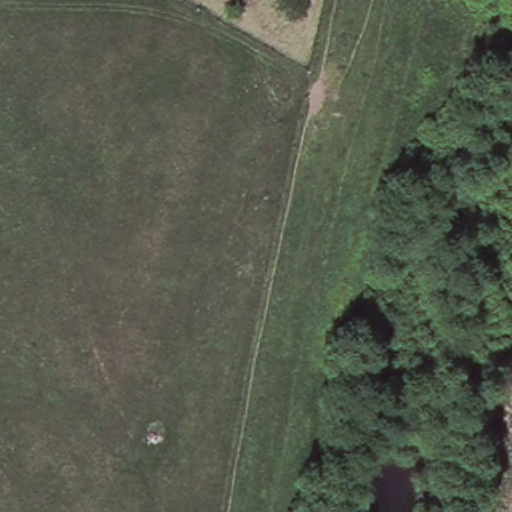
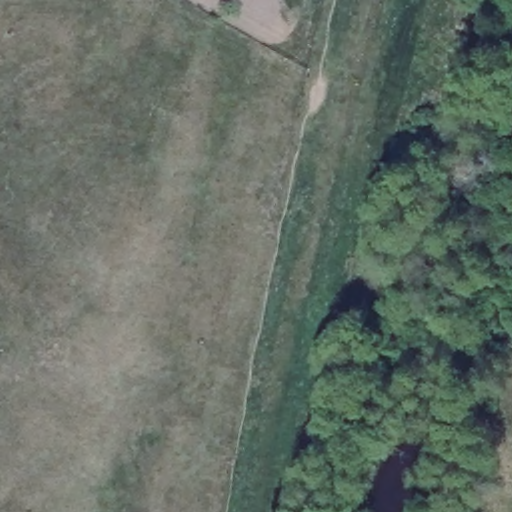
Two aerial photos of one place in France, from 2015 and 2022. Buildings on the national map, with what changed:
[]

